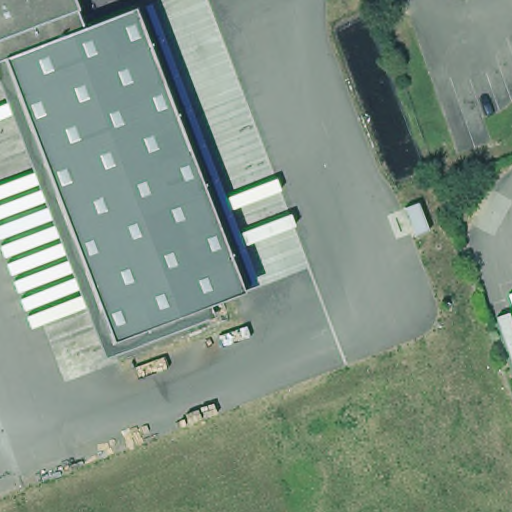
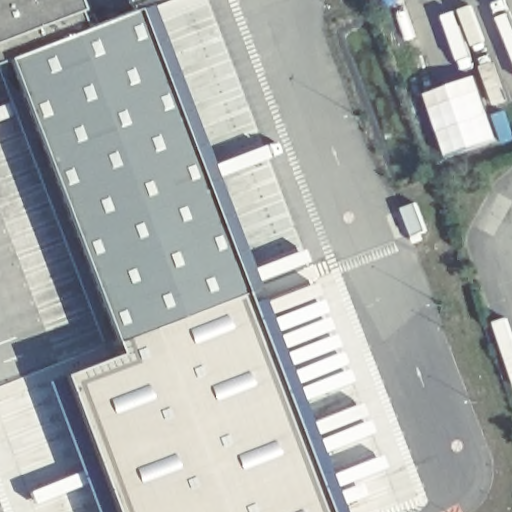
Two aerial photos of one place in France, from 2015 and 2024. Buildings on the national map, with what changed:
unchanged [(74,18),(89,12),(93,21),(130,7),(242,288),(111,340),(0,57),(0,0),(67,0),(74,18)]
new [(477,73),(492,114),(507,109),(512,126),(512,140),(502,144),(502,141),(449,158),(425,93),(477,73)]
new [(417,201),(429,231),(412,238),(400,208),(417,201)]
new [(332,512),(118,512),(67,378),(120,357),(111,340),(242,288),(332,512)]

